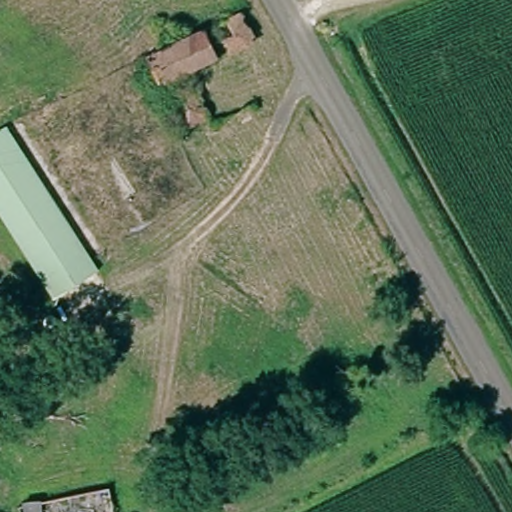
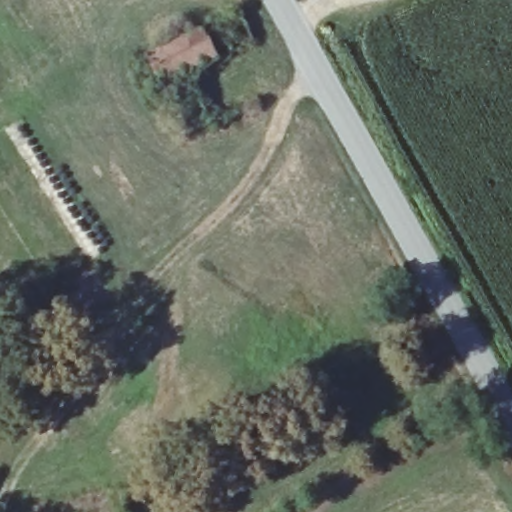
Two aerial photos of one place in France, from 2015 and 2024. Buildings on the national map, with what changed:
unchanged [(158,85),(155,77),(142,84),(133,65),(208,29),(221,54),(158,85)]
unchanged [(207,116),(181,129),(168,100),(194,87),(207,116)]
demolished [(90,280),(98,290),(85,297),(78,287),(53,298),(0,212),(0,133),(6,129),(101,273),(90,280)]
demolished [(22,508),(112,483),(120,512),(23,512),(21,508),(22,508)]

